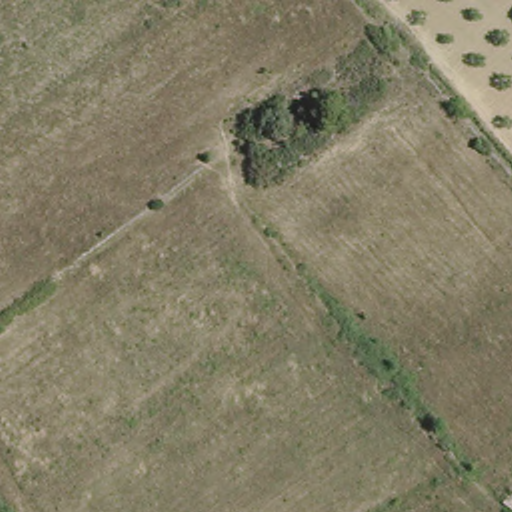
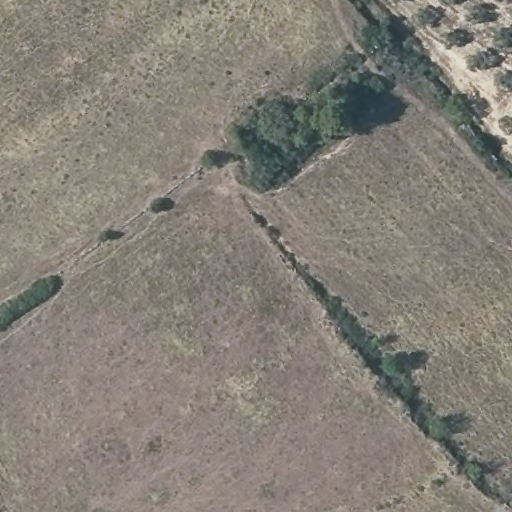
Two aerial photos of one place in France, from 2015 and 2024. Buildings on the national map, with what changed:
unchanged [(512,500),(512,512),(503,512),(500,510),(512,500)]

